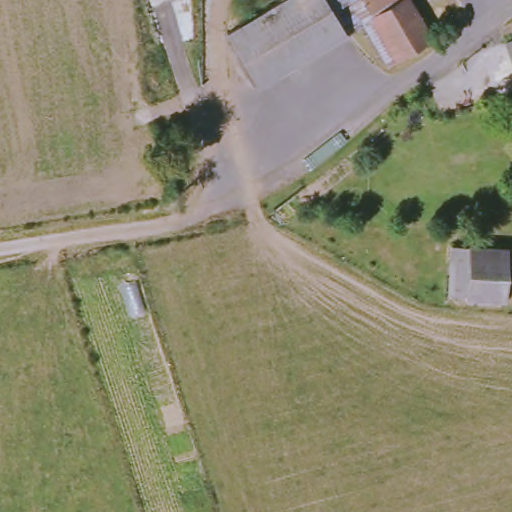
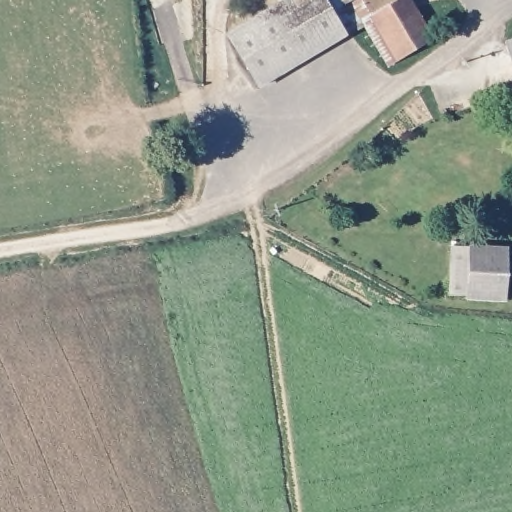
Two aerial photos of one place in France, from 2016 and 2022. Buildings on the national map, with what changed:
unchanged [(352,35),(263,89),(230,37),(291,0),(331,0),(352,35)]
unchanged [(393,64),(373,32),(357,42),(352,35),(331,0),(368,0),(378,16),(401,59),(393,64)]
unchanged [(378,16),(370,0),(411,0),(378,16)]
unchanged [(378,16),(411,0),(412,0),(435,37),(401,59),(378,16)]
unchanged [(452,295),(453,252),(509,255),(508,296),(452,295)]

